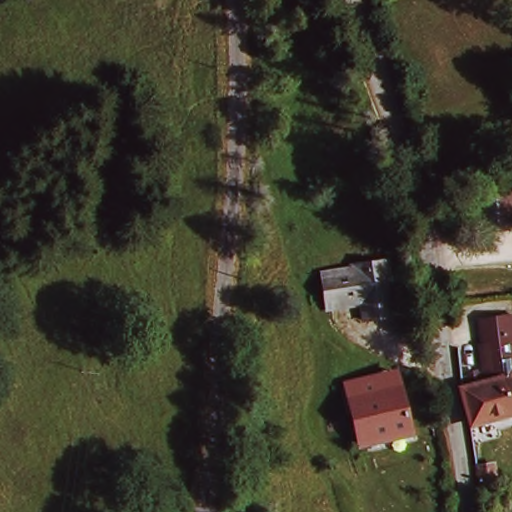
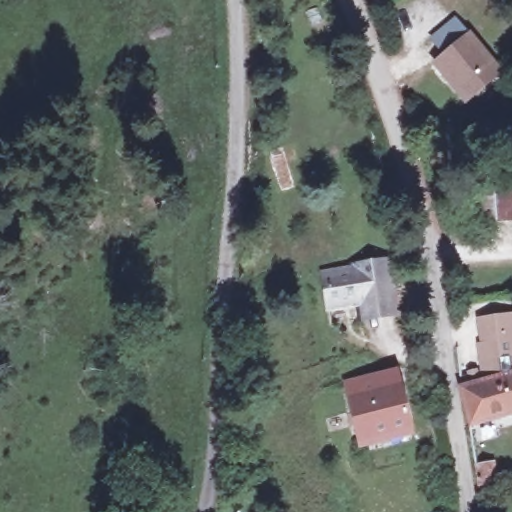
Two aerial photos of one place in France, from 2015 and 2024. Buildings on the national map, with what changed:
new [(439,57),(430,39),(455,17),(466,33),(470,32),(504,74),(465,106),(431,65),(439,57)]
unchanged [(472,199),(506,196),(508,220),(473,223),(472,199)]
unchanged [(403,319),(369,323),(367,308),(367,306),(360,307),(337,310),(336,302),(333,278),(363,273),(364,268),(396,265),(399,283),(403,303),(405,316),(403,319)]
unchanged [(481,373),(476,349),(482,346),(477,323),(512,321),(512,416),(462,430),(454,392),(452,380),(481,373)]
unchanged [(398,375),(400,384),(413,429),(359,443),(347,387),(365,383),(398,375)]
unchanged [(469,464),(490,462),(493,480),(472,480),(469,464)]

